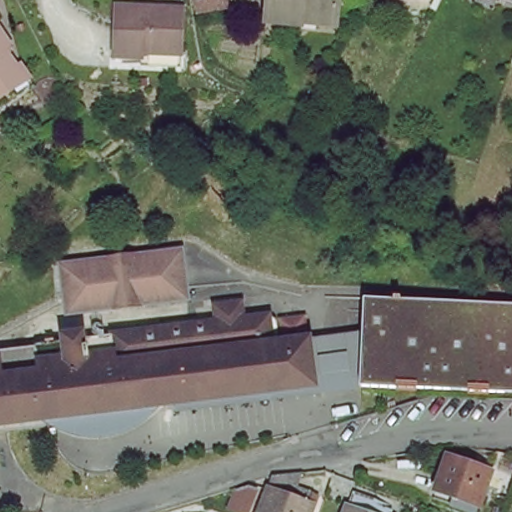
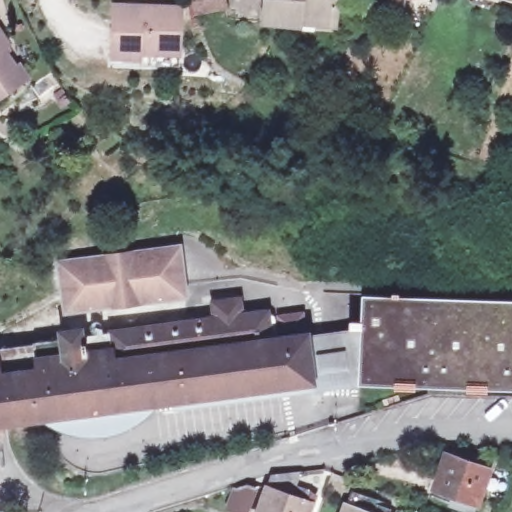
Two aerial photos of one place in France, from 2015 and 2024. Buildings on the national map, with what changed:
unchanged [(191,0),(221,0),(223,9),(194,14),(191,0)]
unchanged [(263,0),(329,0),(326,28),(261,21),(263,0)]
unchanged [(403,2),(403,0),(420,0),(420,3),(403,2)]
unchanged [(492,0),(504,0),(503,3),(492,0)]
unchanged [(141,61),(141,56),(112,52),(118,1),(184,8),(179,54),(178,65),(141,61)]
unchanged [(0,44),(0,40),(2,42),(0,44)]
unchanged [(0,94),(0,54),(18,82),(0,94)]
unchanged [(153,261),(159,298),(84,310),(78,273),(153,261)]
unchanged [(366,296),(512,309),(512,396),(359,381),(366,296)]
unchanged [(0,426),(0,355),(65,347),(64,340),(83,337),(84,341),(216,321),(213,305),(242,302),(244,315),(270,311),(274,342),(308,337),(314,386),(0,426)]
unchanged [(433,491),(446,456),(492,475),(478,509),(433,491)]
unchanged [(264,490),(299,502),(301,492),(313,495),(308,512),(257,512),(264,490)]
unchanged [(341,508),(353,512),(340,512),(341,508)]
unchanged [(375,509),(384,512),(374,512),(375,509)]

